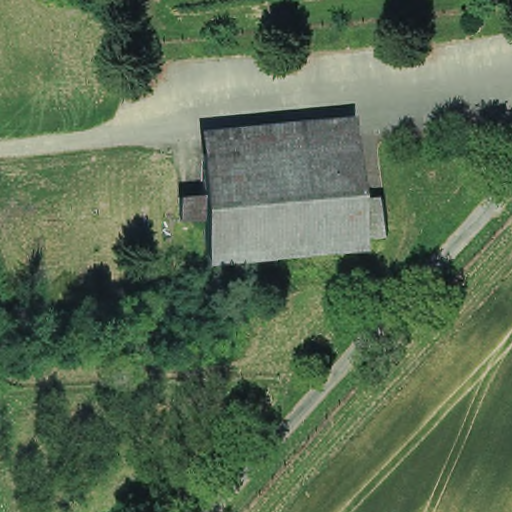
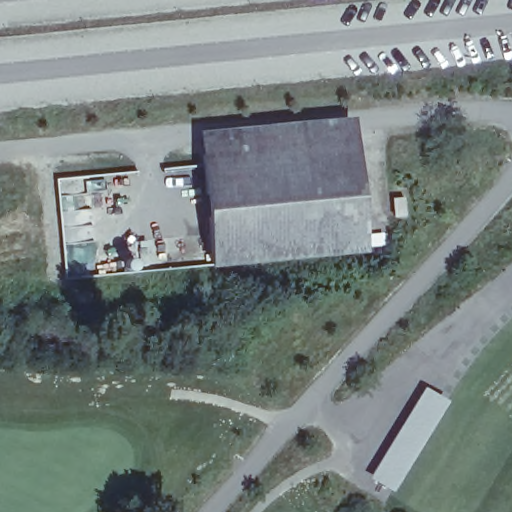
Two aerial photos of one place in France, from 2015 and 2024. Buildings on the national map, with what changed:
unchanged [(384,231),(365,233),(366,245),(213,260),(209,215),(207,192),(203,150),(356,135),(361,196),(381,194),(384,231)]
new [(394,491),(371,477),(425,386),(447,399),(394,491)]

